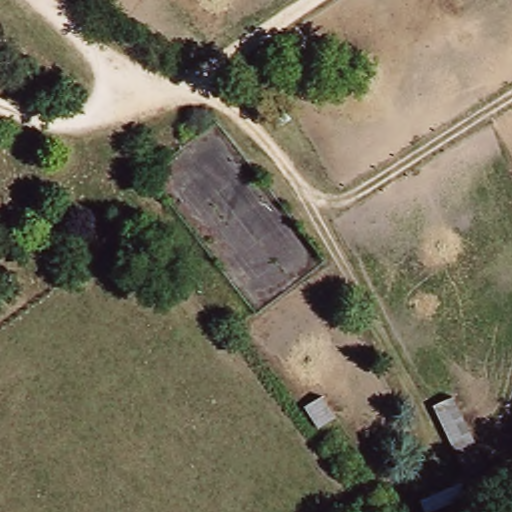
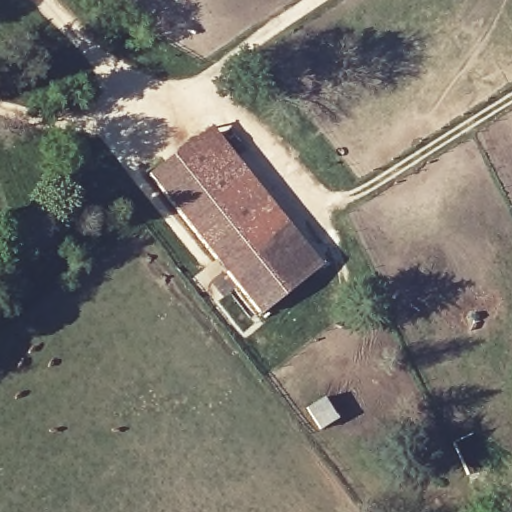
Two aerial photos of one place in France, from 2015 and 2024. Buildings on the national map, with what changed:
new [(323,264),(262,316),(147,176),(210,125),(323,264)]
unchanged [(485,466),(467,475),(433,407),(453,396),(485,466)]
new [(322,400),(335,421),(318,432),(304,410),(322,400)]

